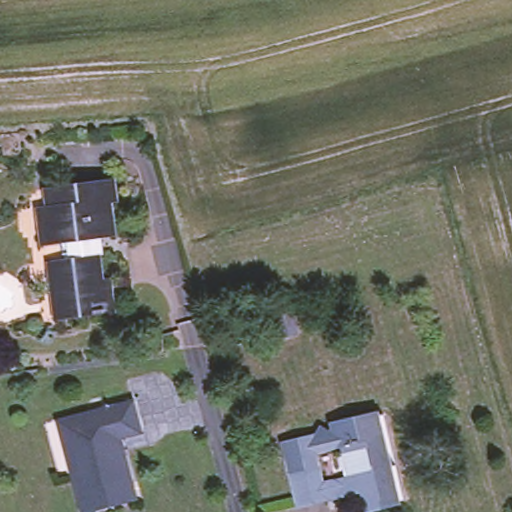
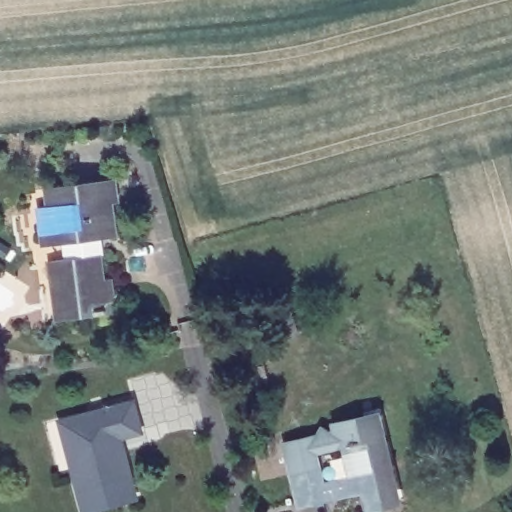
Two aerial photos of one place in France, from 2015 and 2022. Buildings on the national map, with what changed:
unchanged [(50,274),(48,260),(62,258),(60,243),(43,245),(38,207),(47,205),(45,189),(113,180),(115,201),(108,202),(112,236),(99,238),(100,249),(96,255),(100,279),(108,279),(111,311),(85,314),(55,318),(50,274)]
unchanged [(138,434),(116,441),(118,448),(120,448),(128,479),(124,479),(128,498),(119,499),(120,503),(95,509),(94,507),(79,510),(69,473),(55,422),(91,413),(129,403),(138,434)]
unchanged [(283,443),(341,429),(339,423),(376,415),(396,500),(374,504),(369,484),(346,489),(343,475),(366,470),(361,444),(319,453),(286,460),(283,443)]
unchanged [(319,453),(324,479),(343,475),(346,489),(346,495),(294,507),(286,460),(319,453)]

